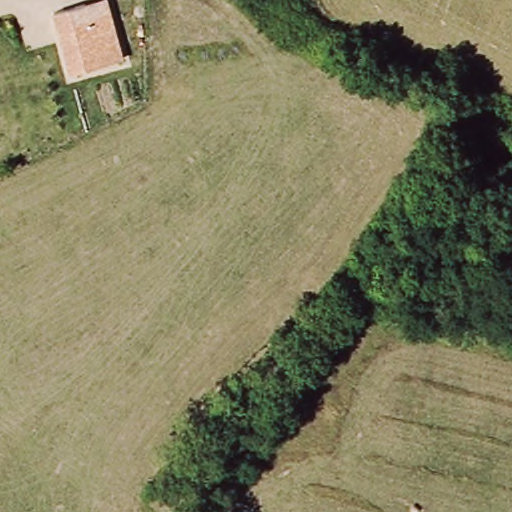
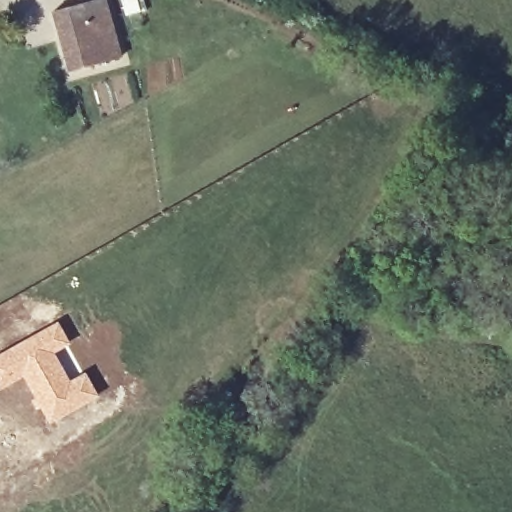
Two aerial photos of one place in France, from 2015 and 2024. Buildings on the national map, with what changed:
unchanged [(96,39),(116,34),(122,55),(71,69),(54,9),(86,0),(96,39)]
new [(71,343),(55,354),(71,379),(85,371),(100,396),(51,424),(23,378),(0,390),(0,353),(58,320),(71,343)]

